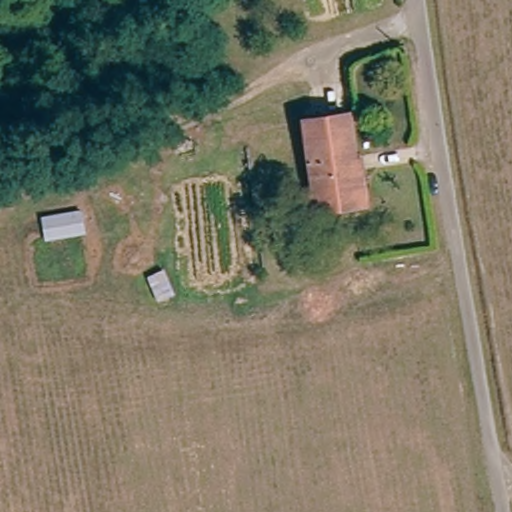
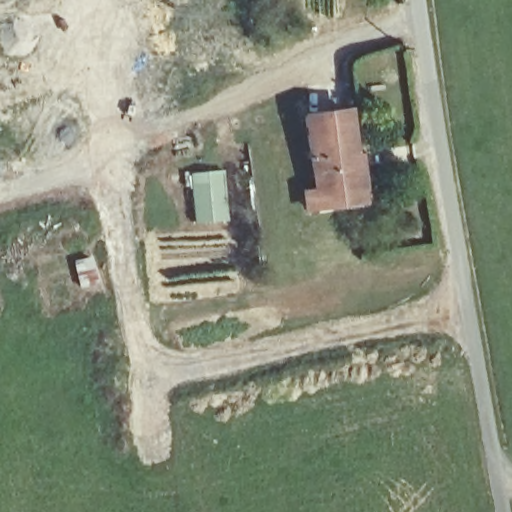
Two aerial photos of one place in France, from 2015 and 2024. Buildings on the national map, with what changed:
unchanged [(316,192),(302,118),(343,110),(353,165),(362,162),(369,202),(360,205),(335,210),(319,212),(316,192)]
new [(193,224),(190,174),(224,171),(228,220),(211,222),(193,224)]

